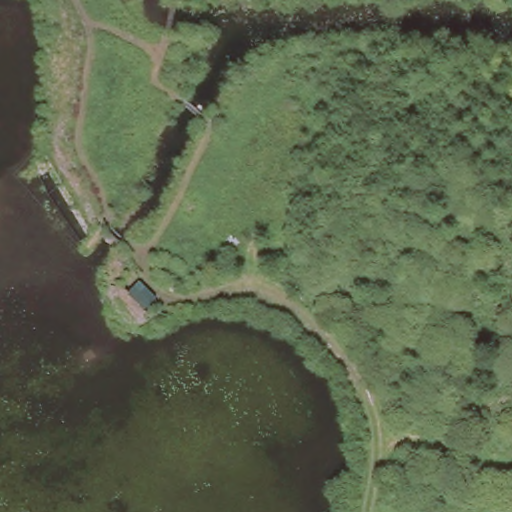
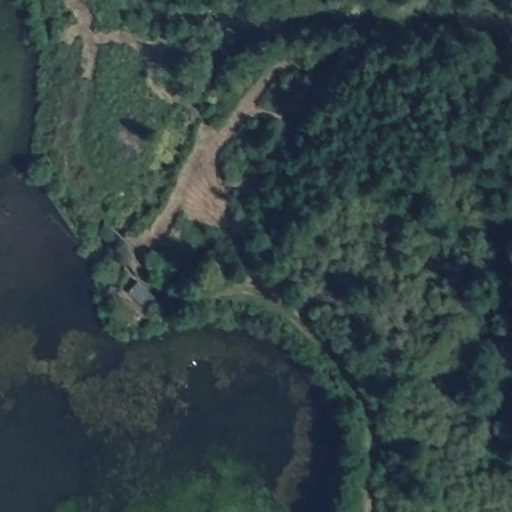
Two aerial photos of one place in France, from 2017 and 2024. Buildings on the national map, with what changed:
unchanged [(116,352),(107,359),(99,349),(108,342),(116,352)]

